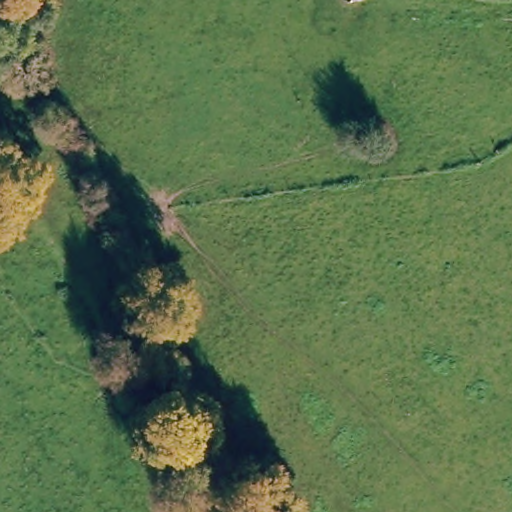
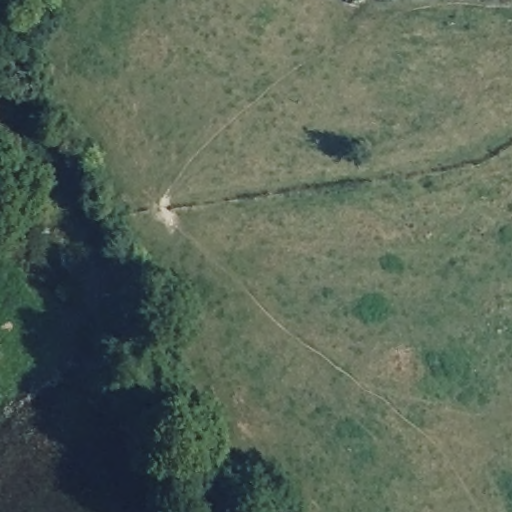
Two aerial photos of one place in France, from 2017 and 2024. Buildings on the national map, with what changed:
[]

